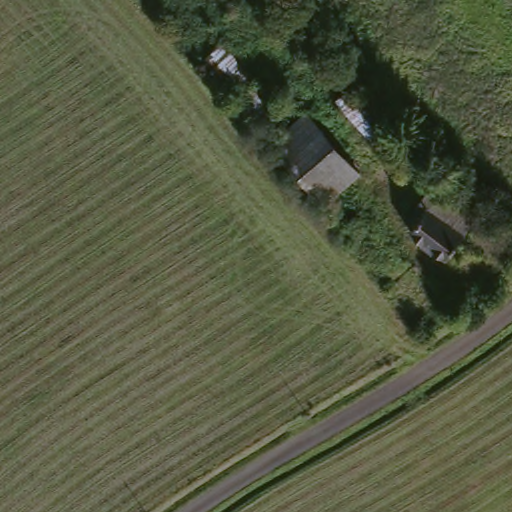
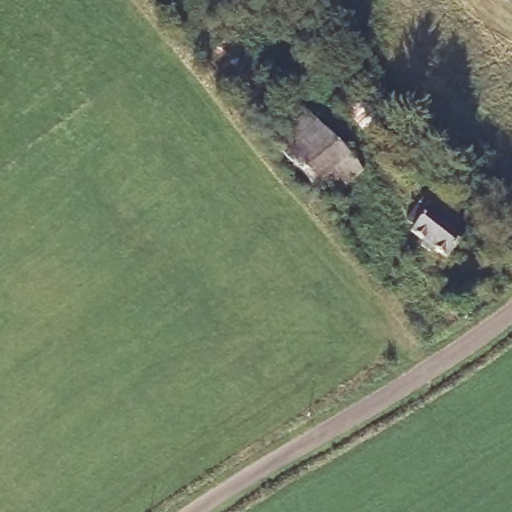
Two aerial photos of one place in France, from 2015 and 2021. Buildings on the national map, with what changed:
unchanged [(285,119),(266,136),(196,57),(214,40),(285,119)]
unchanged [(306,113),(361,173),(326,206),(271,146),(290,129),(306,113)]
unchanged [(441,259),(409,225),(426,207),(418,194),(438,176),(481,223),(441,259)]

